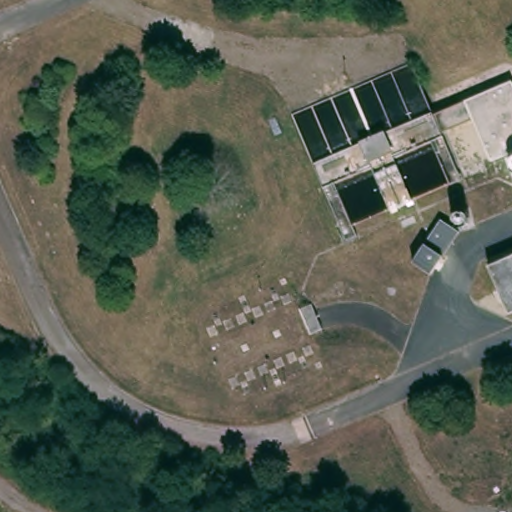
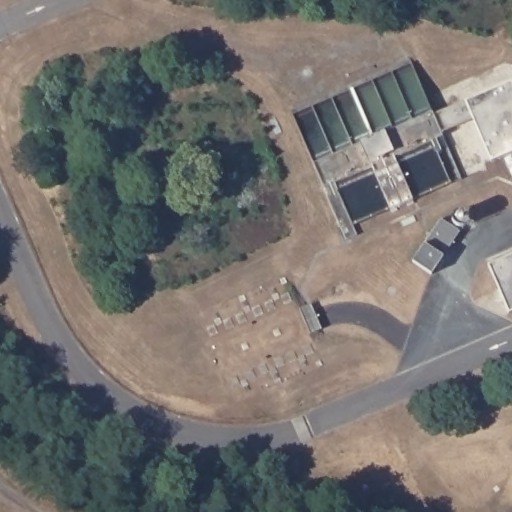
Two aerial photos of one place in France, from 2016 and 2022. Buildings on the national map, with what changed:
unchanged [(512,81),(512,152),(493,160),(473,115),(443,128),(465,178),(356,224),(360,235),(349,239),(292,108),(412,58),(428,94),(436,112),(512,81)]
unchanged [(439,223),(458,235),(430,278),(411,266),(439,223)]
unchanged [(510,313),(489,263),(512,254),(512,312),(510,313)]
unchanged [(310,308),(321,333),(309,338),(298,313),(310,308)]

